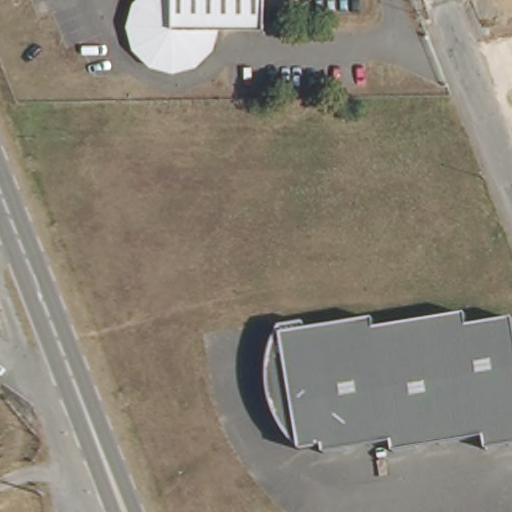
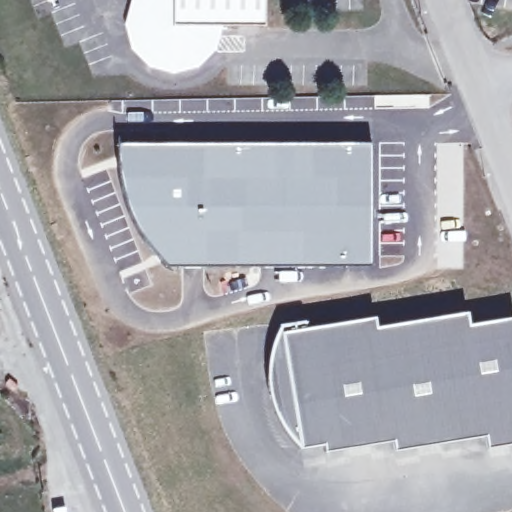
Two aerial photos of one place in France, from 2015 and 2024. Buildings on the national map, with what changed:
unchanged [(264,24),(220,25),(213,44),(193,68),(174,71),(151,67),(134,49),(126,25),(133,5),(137,0),(264,0),(264,24)]
new [(372,142),(371,267),(298,269),(165,268),(141,235),(126,206),(117,176),(114,143),(372,142)]
unchanged [(484,438),(394,452),(393,442),(371,446),(349,449),(325,453),(324,446),(301,449),(298,446),(286,431),(276,413),(272,399),(270,386),(270,367),(270,359),(274,342),(281,327),(306,323),(308,330),(376,319),(377,329),(468,314),(469,326),(512,319),(512,446),(510,446),(487,450),(486,447),(484,438)]

